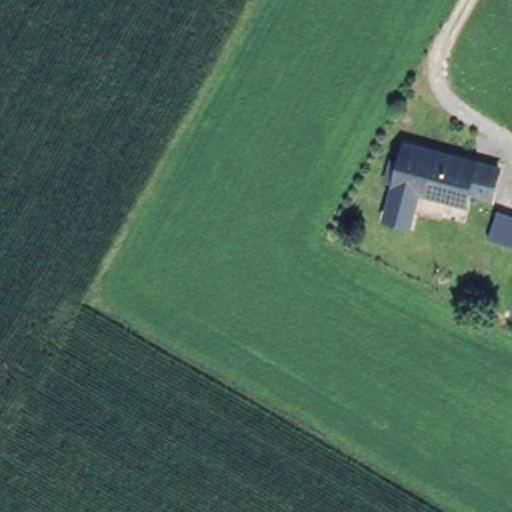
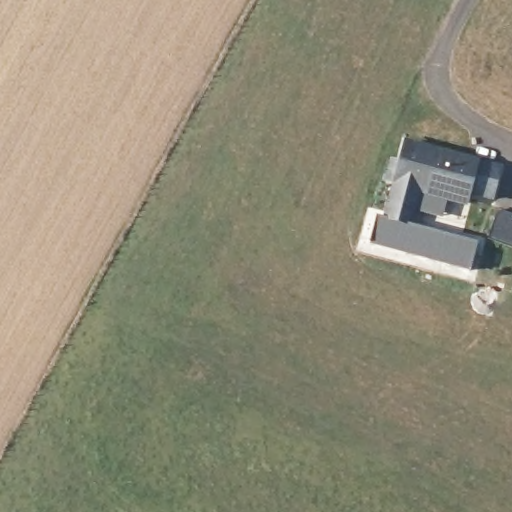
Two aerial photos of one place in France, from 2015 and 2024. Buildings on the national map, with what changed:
unchanged [(407,137),(506,164),(495,198),(473,193),(470,203),(448,198),(395,184),(407,137)]
unchanged [(392,184),(395,184),(448,198),(444,219),(416,211),(411,229),(383,220),(392,184)]
new [(477,244),(470,270),(368,244),(376,217),(383,220),(411,229),(412,225),(477,244)]

